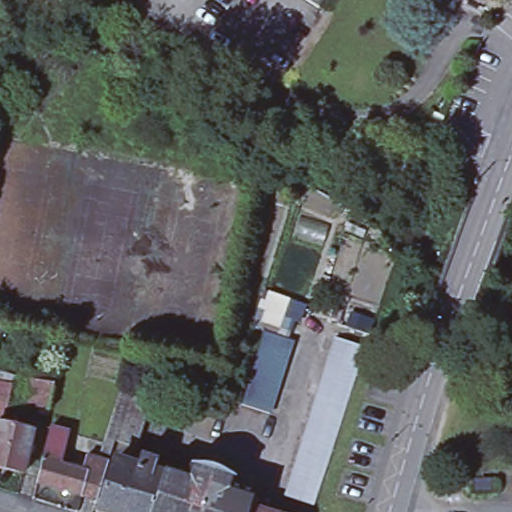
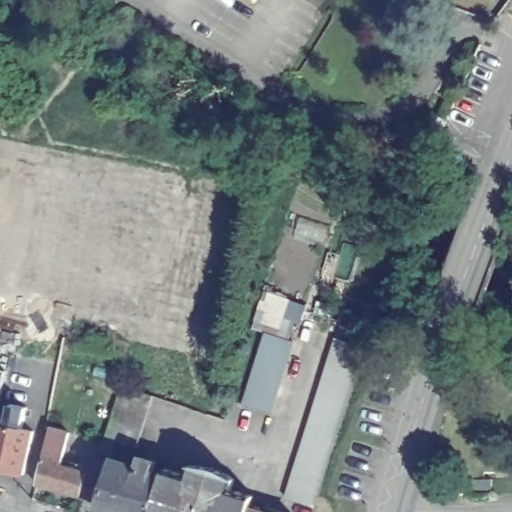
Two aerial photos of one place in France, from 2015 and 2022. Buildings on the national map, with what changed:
unchanged [(428,126),(434,113),(445,118),(438,131),(428,126)]
unchanged [(252,356),(257,342),(261,327),(285,335),(290,336),(285,350),(280,365),(275,380),(271,395),(266,409),(238,400),(243,385),(247,371),(252,356)]
unchanged [(299,454),(303,440),(308,425),(312,411),(317,396),(321,382),(326,367),(330,353),(335,338),(365,347),(360,362),(358,370),(356,376),(352,388),(351,391),(346,405),(342,420),(337,435),(332,449),(331,455),(328,463),(325,471),(323,478),(322,482),(318,492),(314,507),(285,497),(290,483),(295,468),(299,454)]
unchanged [(7,421),(0,419),(0,382),(15,385),(7,421)]
unchanged [(105,438),(111,421),(117,403),(123,386),(154,395),(148,413),(142,431),(137,448),(115,441),(105,438)]
unchanged [(0,425),(0,423),(38,431),(28,474),(0,467),(0,425)]
unchanged [(36,483),(50,428),(69,433),(61,465),(82,471),(86,456),(102,461),(108,463),(96,500),(95,500),(36,483)]
unchanged [(115,461),(137,468),(141,457),(156,462),(153,473),(163,476),(151,512),(105,512),(98,510),(115,461)]
unchanged [(165,468),(195,477),(198,465),(228,475),(225,487),(238,491),(253,496),(253,498),(268,504),(268,508),(280,512),(151,512),(163,476),(165,468)]

